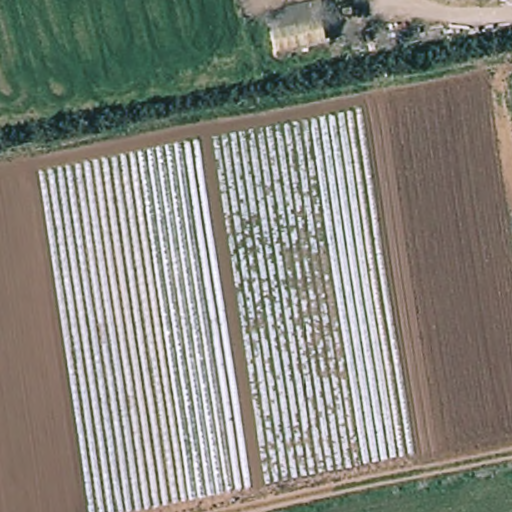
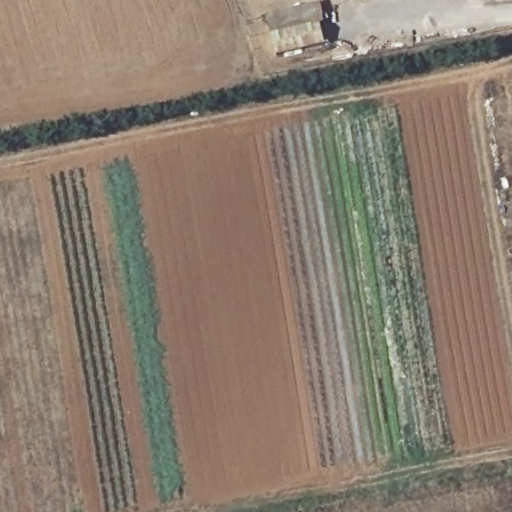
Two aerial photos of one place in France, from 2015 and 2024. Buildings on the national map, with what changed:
unchanged [(275,54),(266,14),(322,1),(327,22),(321,24),(325,42),(275,54)]

